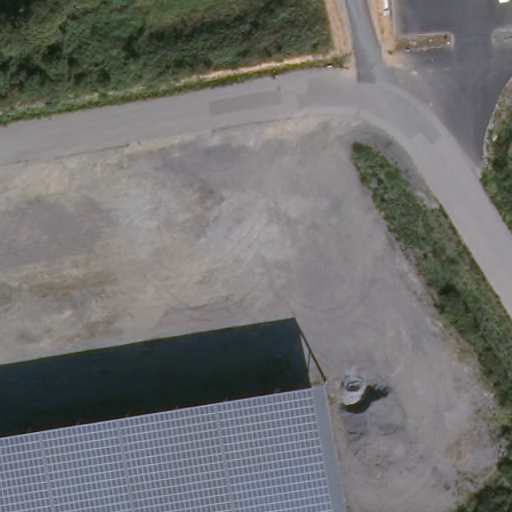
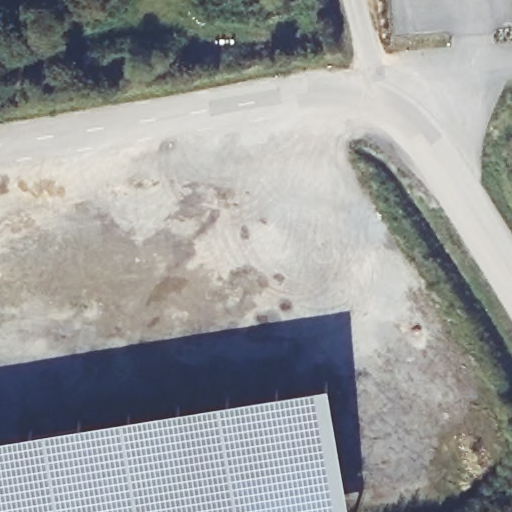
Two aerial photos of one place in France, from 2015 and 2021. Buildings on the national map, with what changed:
unchanged [(330,381),(349,512),(0,512),(0,433),(330,381)]

